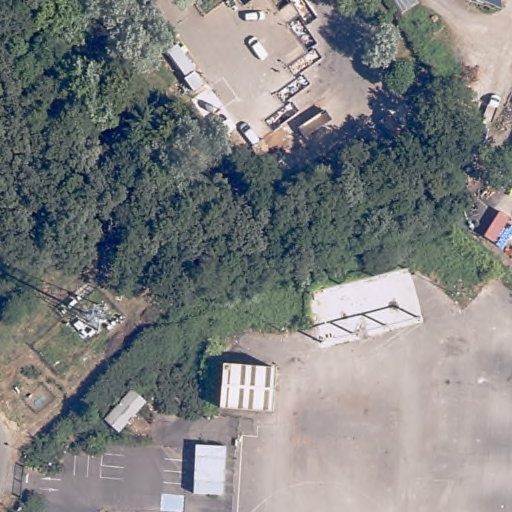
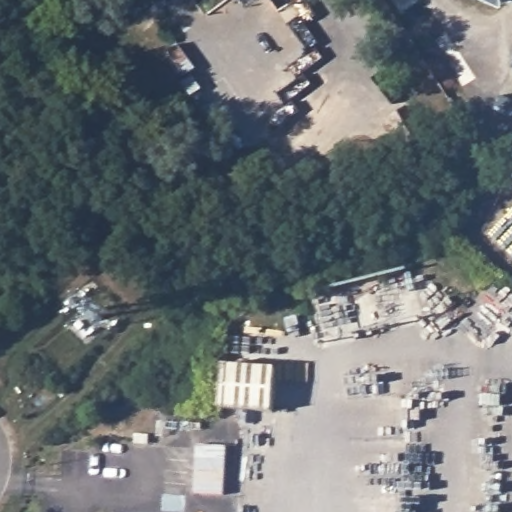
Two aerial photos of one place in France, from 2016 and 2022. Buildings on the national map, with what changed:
unchanged [(222,363),(275,366),(273,411),(219,407),(222,363)]
unchanged [(194,492),(196,443),(226,445),(224,493),(194,492)]

